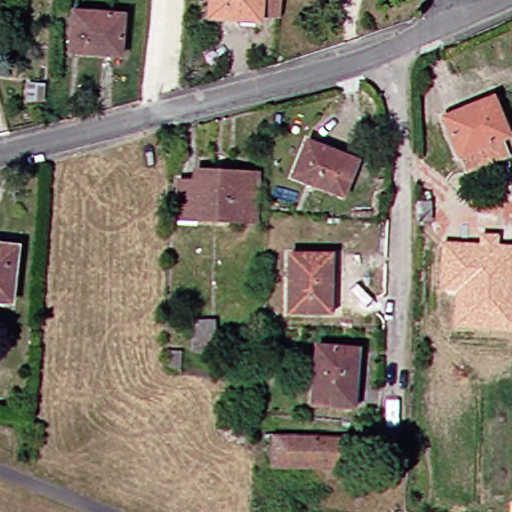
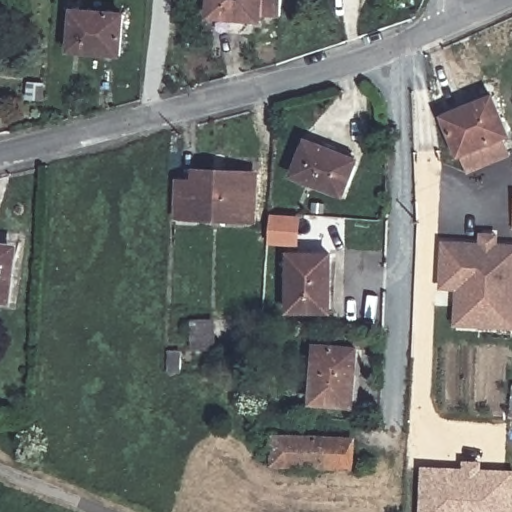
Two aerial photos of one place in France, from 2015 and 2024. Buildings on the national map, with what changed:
unchanged [(261,21),(210,17),(212,0),(283,0),(281,17),(261,15),(261,21)]
unchanged [(79,15),(129,19),(125,59),(120,59),(81,55),(75,55),(79,15)]
unchanged [(27,98),(29,81),(46,82),(45,100),(27,98)]
unchanged [(509,134),(460,154),(445,116),(493,97),(509,134)]
unchanged [(305,132),(282,135),(280,118),(304,116),(305,132)]
unchanged [(343,199),(295,180),(307,146),(356,166),(343,199)]
unchanged [(257,220),(178,216),(180,180),(196,180),(197,170),(259,173),(257,220)]
unchanged [(432,199),(433,212),(434,219),(418,220),(417,200),(432,199)]
unchanged [(455,290),(439,288),(441,241),(480,243),(480,234),(498,235),(497,244),(512,245),(512,330),(453,327),(455,290)]
unchanged [(16,245),(9,301),(0,300),(0,243),(16,245)]
unchanged [(330,310),(291,310),(291,254),(329,254),(330,310)]
unchanged [(170,350),(181,349),(180,321),(217,318),(217,335),(218,352),(224,352),(225,366),(211,366),(212,375),(169,378),(170,350)]
unchanged [(353,405),(313,401),(318,346),(357,349),(353,405)]
unchanged [(289,465),(289,469),(264,467),(265,435),(317,438),(343,440),(342,451),(342,467),(289,465)]
new [(422,463),(464,465),(464,458),(483,459),(483,467),(512,468),(512,512),(421,512),(422,463)]

